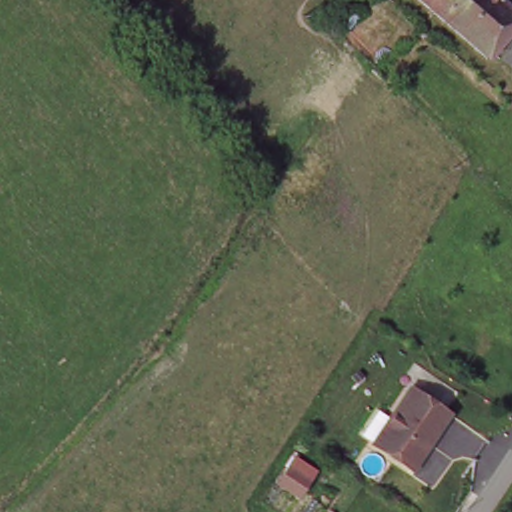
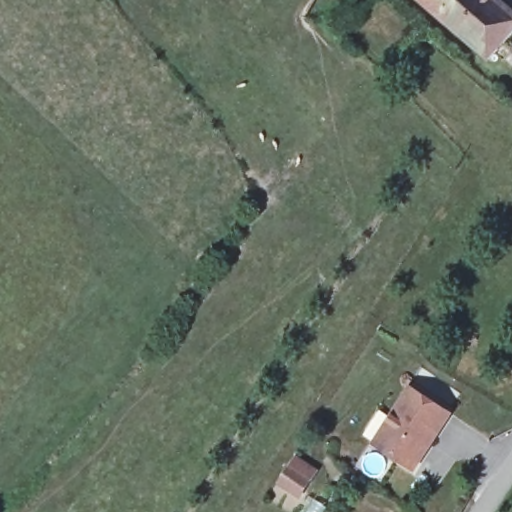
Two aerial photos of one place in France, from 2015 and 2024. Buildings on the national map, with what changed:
unchanged [(486,62),(414,0),(486,0),(512,23),(512,31),(486,62)]
unchanged [(414,391),(451,415),(439,433),(436,432),(432,437),(435,439),(415,470),(377,446),(414,391)]

